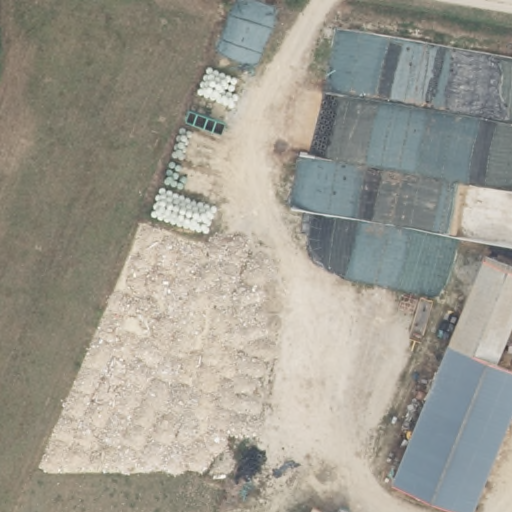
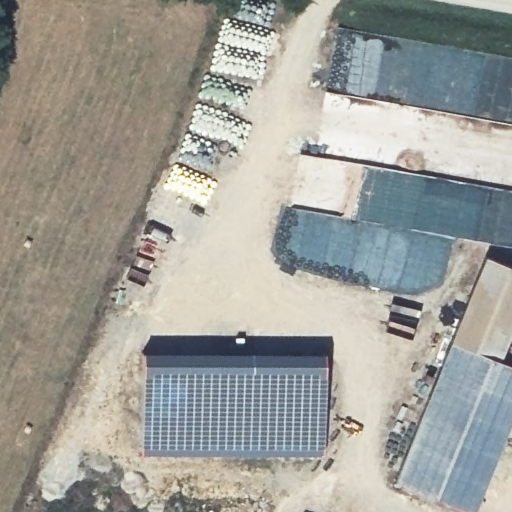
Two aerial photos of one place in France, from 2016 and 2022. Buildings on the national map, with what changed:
unchanged [(512,326),(499,360),(512,365),(512,414),(473,510),(392,479),(481,256),(512,269),(512,326)]
new [(139,349),(322,351),(322,455),(138,453),(139,349)]

